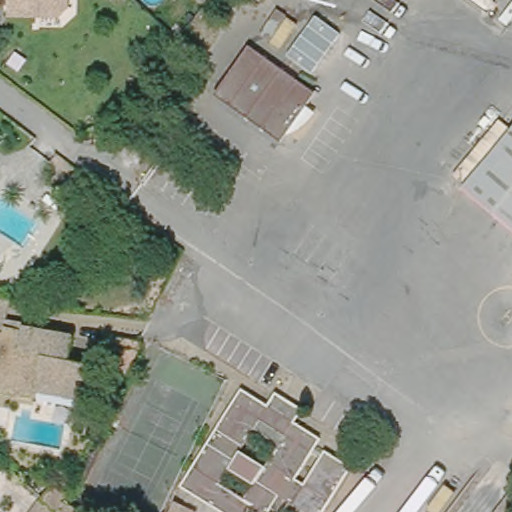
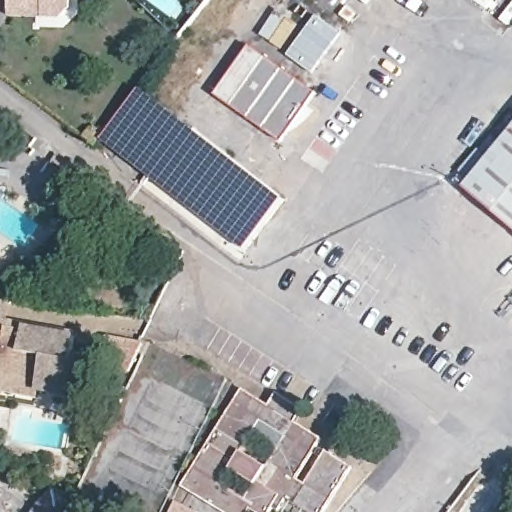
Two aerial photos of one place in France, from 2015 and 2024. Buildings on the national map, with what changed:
unchanged [(62,15),(8,14),(8,0),(72,0),(72,2),(62,15)]
new [(316,15),(342,34),(313,73),(287,55),(316,15)]
unchanged [(317,95),(281,143),(214,93),(248,46),(317,95)]
new [(279,196),(239,247),(100,137),(93,144),(83,137),(90,127),(101,136),(140,86),(279,196)]
unchanged [(492,122),(505,131),(462,188),(450,178),(492,122)]
unchanged [(512,122),(512,137),(505,131),(512,122)]
unchanged [(512,137),(512,230),(461,190),(462,188),(505,131),(512,137)]
unchanged [(24,324),(0,322),(0,296),(28,300),(24,324)]
unchanged [(75,329),(73,351),(104,355),(106,334),(142,338),(135,371),(106,370),(103,399),(29,389),(26,411),(0,411),(0,322),(24,324),(75,329)]
unchanged [(219,421),(240,379),(254,389),(260,393),(265,387),(301,409),(295,417),(322,432),(316,446),(352,469),(325,512),(305,512),(278,494),(267,512),(252,512),(244,507),(239,512),(220,512),(179,485),(182,480),(207,430),(213,419),(219,421)]
unchanged [(79,509),(77,512),(34,512),(48,492),(79,509)]
demolished [(501,512),(512,495),(512,512),(501,512)]
unchanged [(171,512),(178,497),(207,512),(171,512)]

